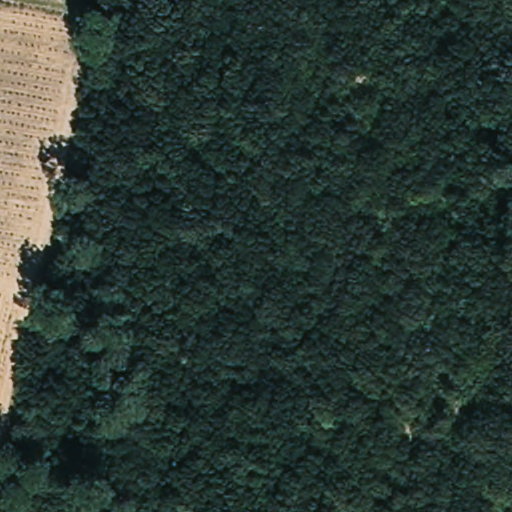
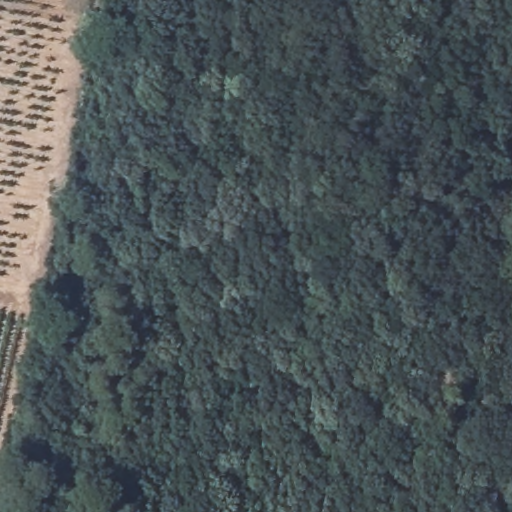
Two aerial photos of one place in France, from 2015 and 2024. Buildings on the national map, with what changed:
[]

